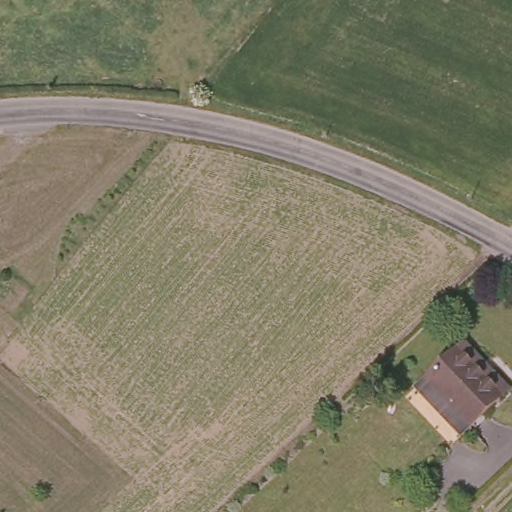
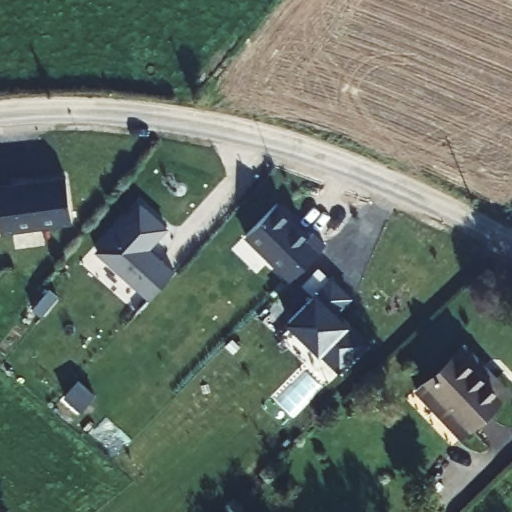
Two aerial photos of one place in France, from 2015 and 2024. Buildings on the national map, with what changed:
new [(29,184),(35,184),(35,182),(67,177),(72,223),(1,232),(0,223),(0,186),(27,183),(29,184)]
new [(276,203),(309,236),(312,232),(325,244),(291,279),(246,234),(276,203)]
new [(97,250),(140,204),(167,228),(147,250),(160,262),(162,260),(175,272),(150,299),(97,250)]
new [(354,294),(339,309),(351,321),(372,338),(342,370),(321,351),(288,319),(318,288),(332,274),(354,294)]
unchanged [(421,384),(461,345),(480,366),(476,370),(501,394),(465,430),(421,384)]

